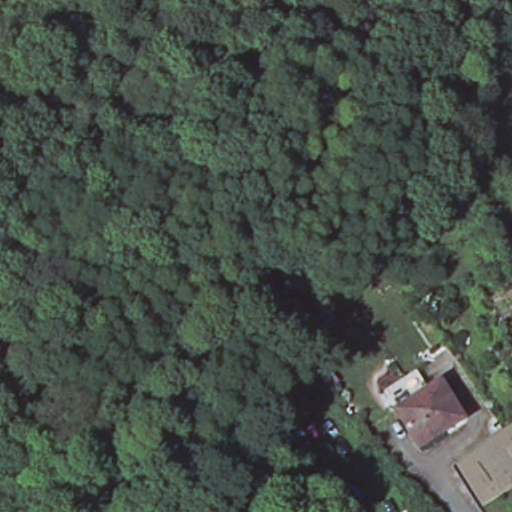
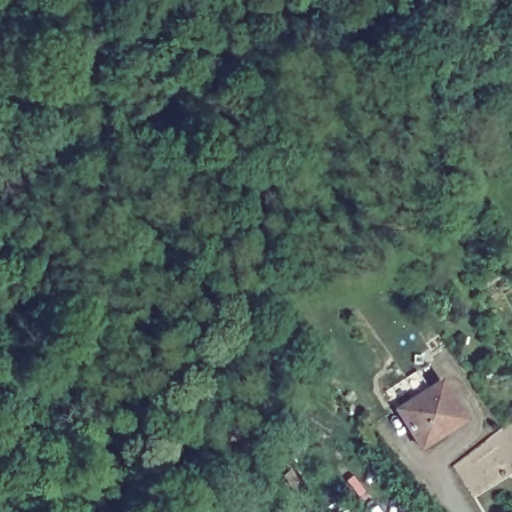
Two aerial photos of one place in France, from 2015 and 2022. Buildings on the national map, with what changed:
unchanged [(436,453),(412,416),(400,398),(432,378),(444,396),(456,389),(479,426),(436,453)]
unchanged [(364,508),(366,512),(359,512),(364,508)]

